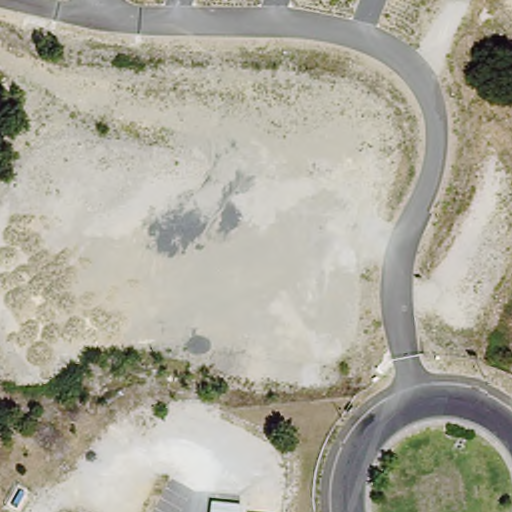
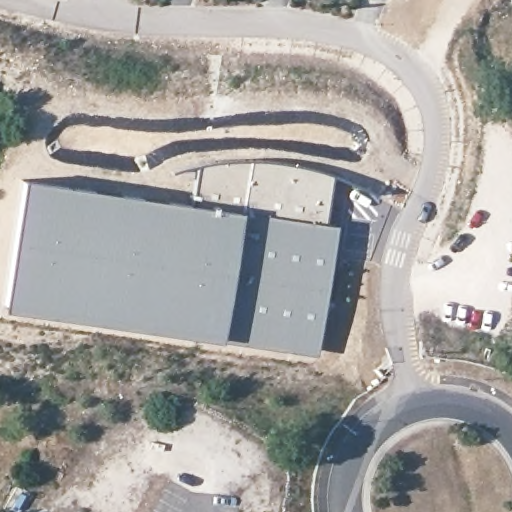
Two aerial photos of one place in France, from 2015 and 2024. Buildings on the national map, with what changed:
new [(21,178),(192,203),(198,164),(225,160),(251,160),(289,163),(320,171),(330,175),(323,223),(335,224),(316,356),(218,340),(1,309),(21,178)]

